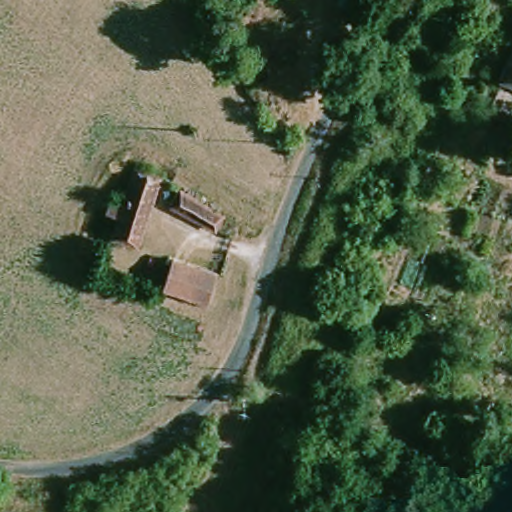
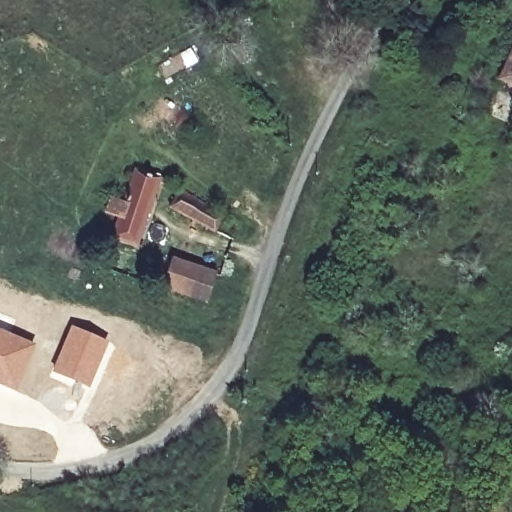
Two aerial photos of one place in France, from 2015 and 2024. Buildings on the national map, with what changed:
unchanged [(512,42),(512,88),(495,80),(512,42)]
unchanged [(133,250),(109,241),(136,170),(164,181),(133,250)]
unchanged [(225,209),(219,225),(175,203),(182,185),(225,209)]
unchanged [(217,274),(204,305),(165,293),(171,259),(217,274)]
new [(70,325),(109,340),(89,388),(50,372),(70,325)]
new [(15,391),(0,385),(0,328),(36,343),(15,391)]

